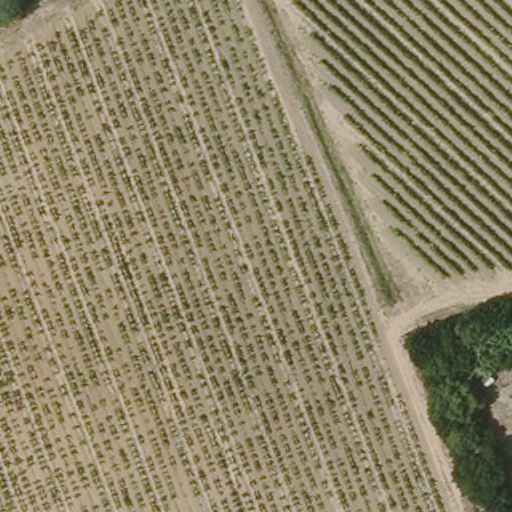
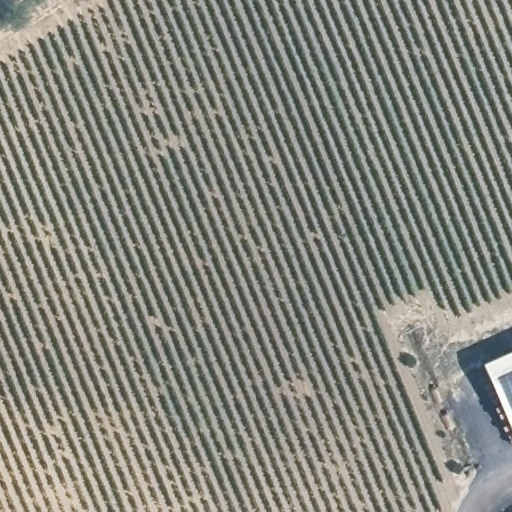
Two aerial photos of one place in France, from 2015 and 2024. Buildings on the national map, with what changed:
new [(512,349),(512,431),(481,363),(512,349)]

